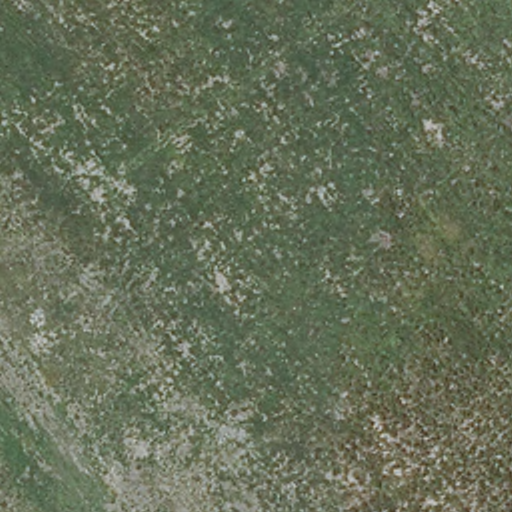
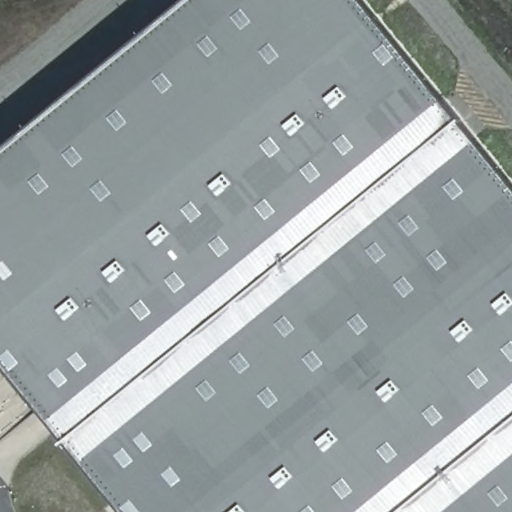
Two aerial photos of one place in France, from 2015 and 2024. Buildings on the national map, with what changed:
new [(0,358),(0,156),(194,0),(362,0),(512,183),(512,512),(124,512),(0,358)]

